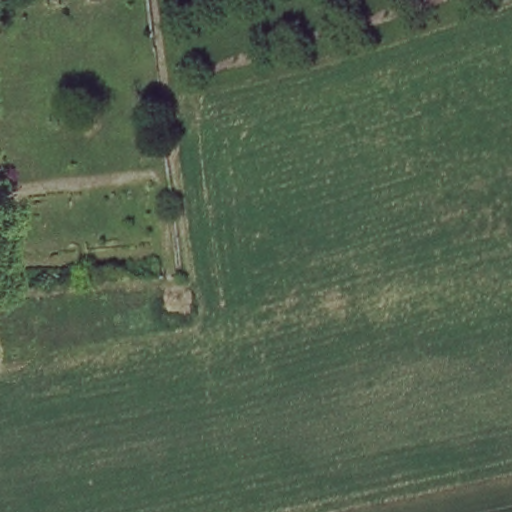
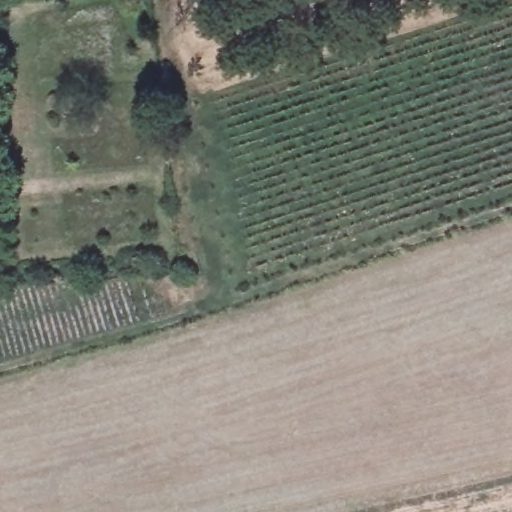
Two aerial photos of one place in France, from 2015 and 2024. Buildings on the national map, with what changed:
[]

